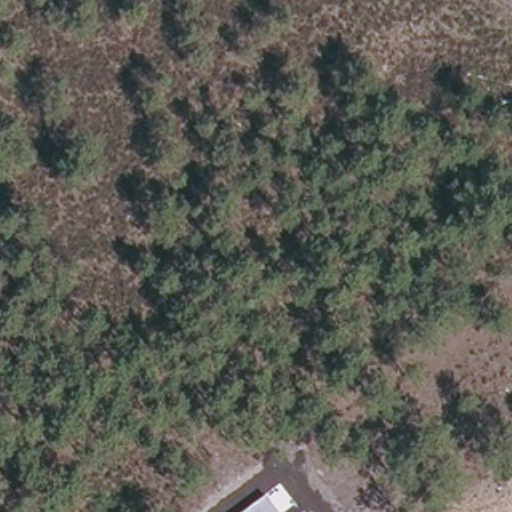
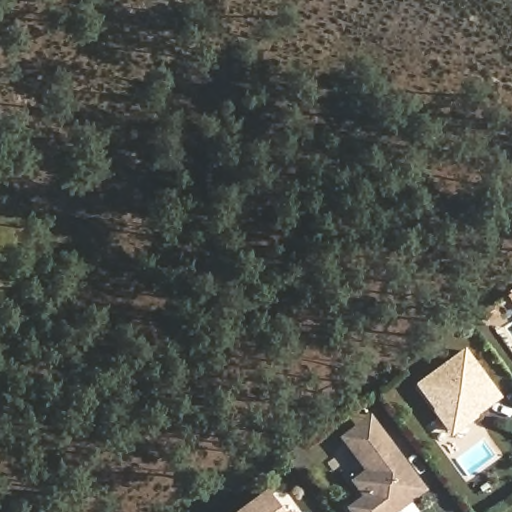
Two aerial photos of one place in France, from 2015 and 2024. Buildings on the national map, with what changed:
new [(502,398),(477,416),(477,418),(452,438),(451,436),(415,384),(465,348),(502,398)]
new [(427,491),(400,512),(348,512),(345,508),(361,496),(350,481),(363,471),(338,437),(370,414),(427,491)]
unchanged [(276,512),(242,512),(264,496),(276,512)]

